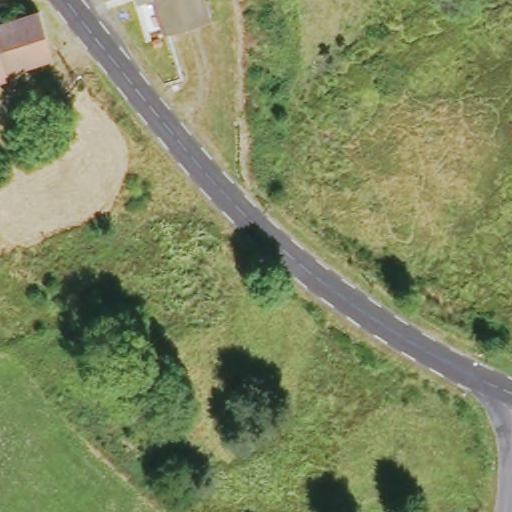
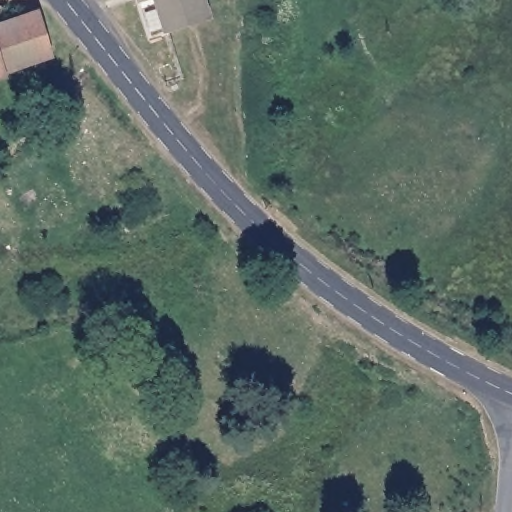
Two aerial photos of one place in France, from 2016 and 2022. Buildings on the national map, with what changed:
unchanged [(136,0),(200,0),(205,18),(162,32),(153,0),(137,5),(136,0)]
unchanged [(2,73),(3,76),(0,76),(0,23),(34,13),(47,57),(2,73)]

